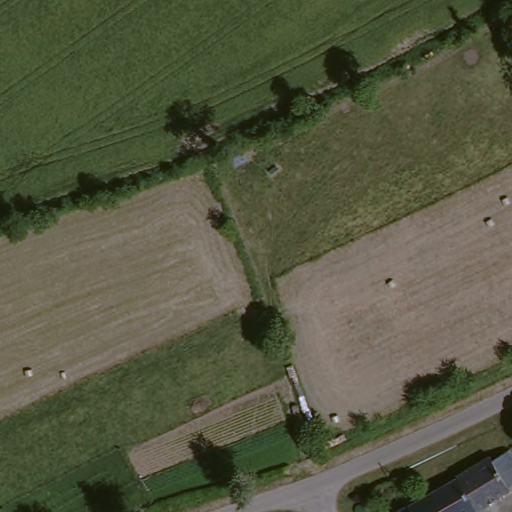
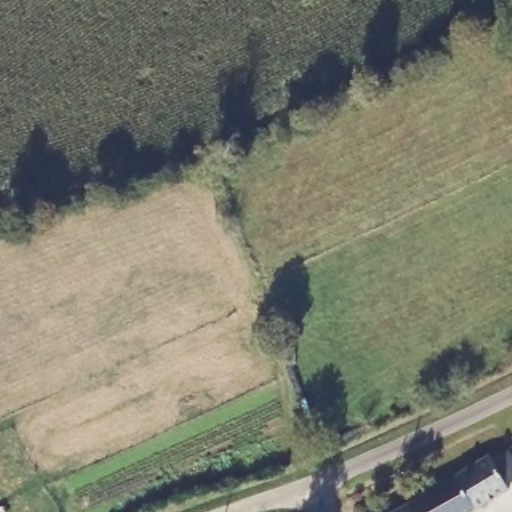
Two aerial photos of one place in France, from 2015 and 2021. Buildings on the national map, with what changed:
unchanged [(486,465),(507,456),(512,463),(512,485),(502,491),(504,495),(476,512),(467,512),(450,481),(484,462),(486,465)]
unchanged [(467,512),(402,512),(401,510),(450,481),(467,512)]
unchanged [(401,510),(402,512),(398,512),(401,510)]

